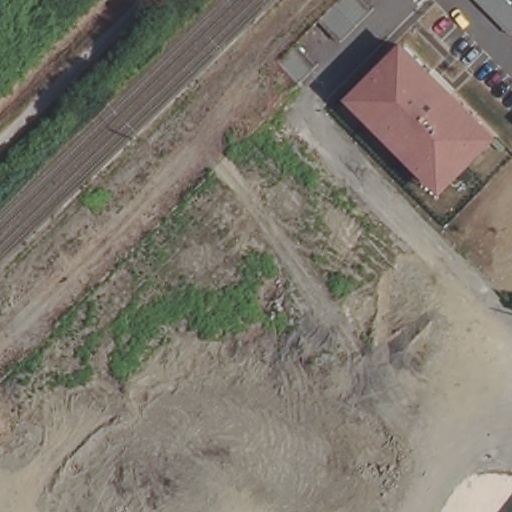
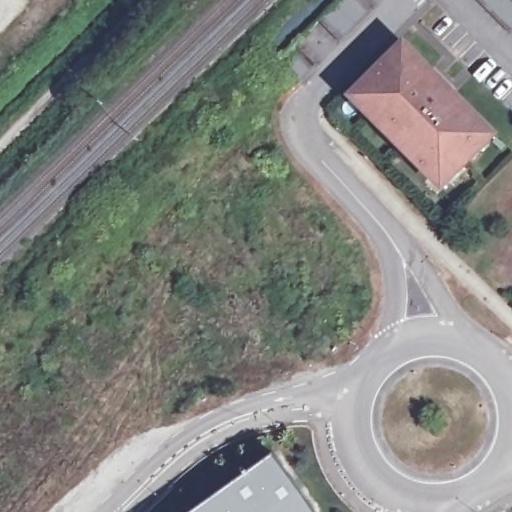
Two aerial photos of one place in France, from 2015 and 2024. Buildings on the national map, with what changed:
unchanged [(318,22),(340,0),(359,0),(371,11),(340,41),(318,22)]
unchanged [(477,0),(508,0),(512,4),(512,31),(511,33),(477,0)]
new [(295,40),(317,62),(300,79),(279,57),(295,40)]
unchanged [(497,140),(442,193),(351,97),(407,43),(497,140)]
new [(277,455),(318,512),(198,512),(277,455)]

